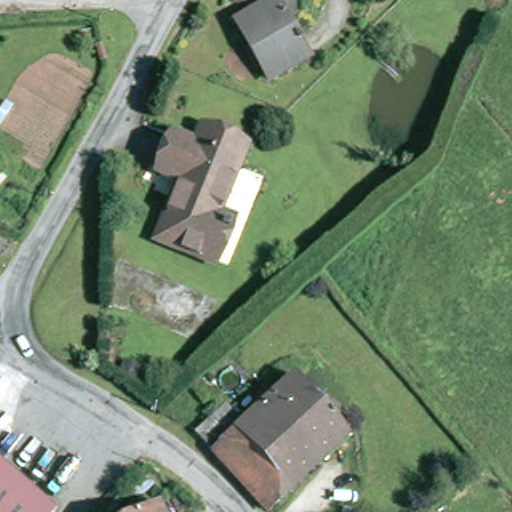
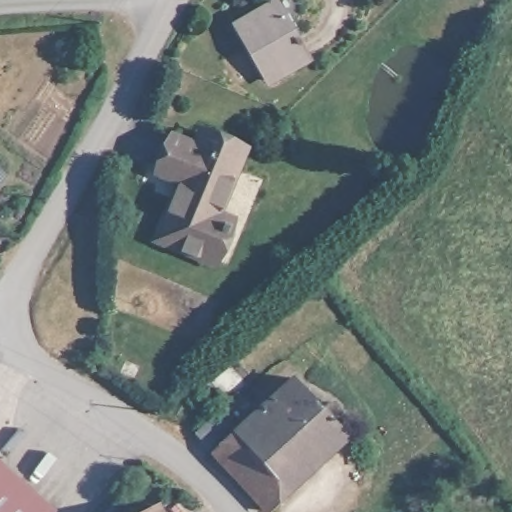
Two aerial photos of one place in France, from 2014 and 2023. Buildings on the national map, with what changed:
unchanged [(270,80),(238,23),(277,0),(310,57),(270,80)]
unchanged [(201,132),(243,149),(217,213),(231,218),(213,261),(158,238),(181,180),(160,171),(175,138),(195,147),(201,132)]
unchanged [(310,372),(340,403),(347,395),(357,406),(350,413),(365,430),(280,509),(207,431),(241,400),(260,419),(310,372)]
unchanged [(62,512),(0,512),(0,457),(62,512)]
unchanged [(161,512),(157,512),(160,510),(161,512)]

